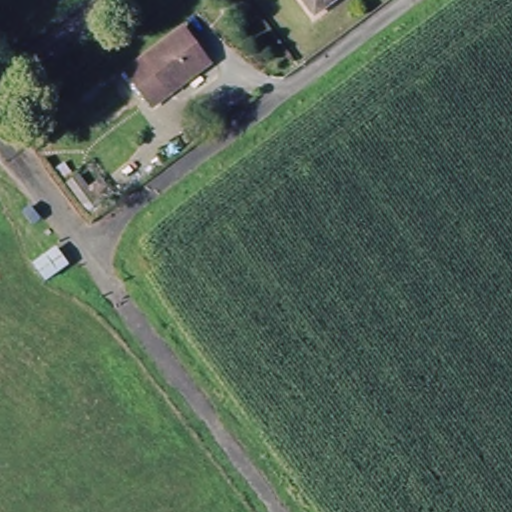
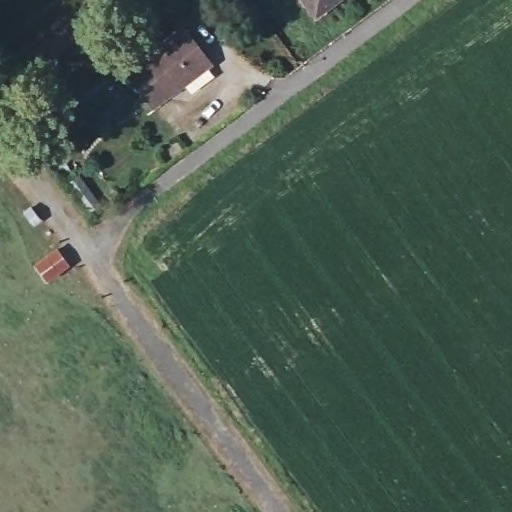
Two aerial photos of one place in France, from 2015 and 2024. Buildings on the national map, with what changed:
unchanged [(314,15),(304,0),(330,0),(331,1),(314,15)]
unchanged [(146,101),(128,74),(183,32),(209,66),(173,93),(153,111),(146,101)]

